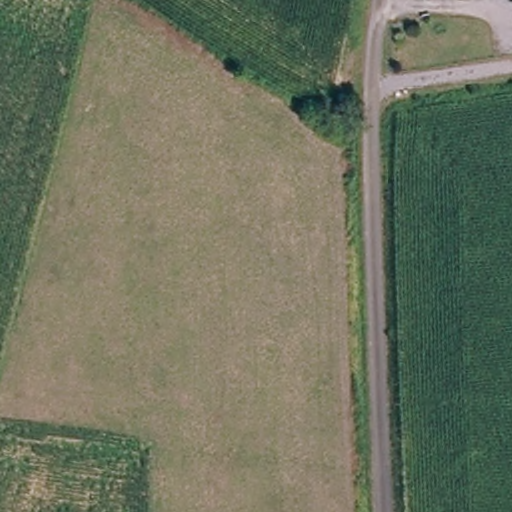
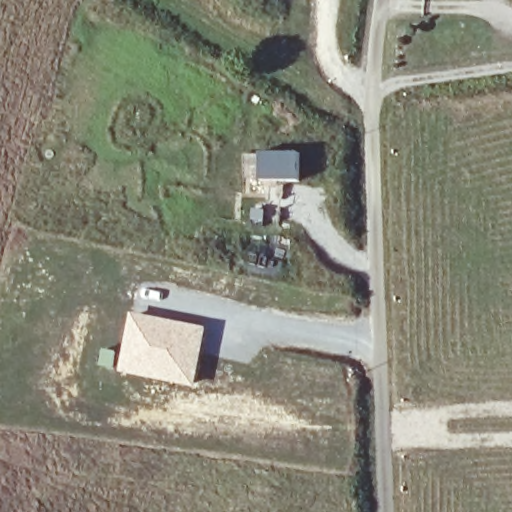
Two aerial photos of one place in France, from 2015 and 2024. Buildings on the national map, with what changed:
new [(132,311),(208,327),(195,387),(117,372),(132,311)]

